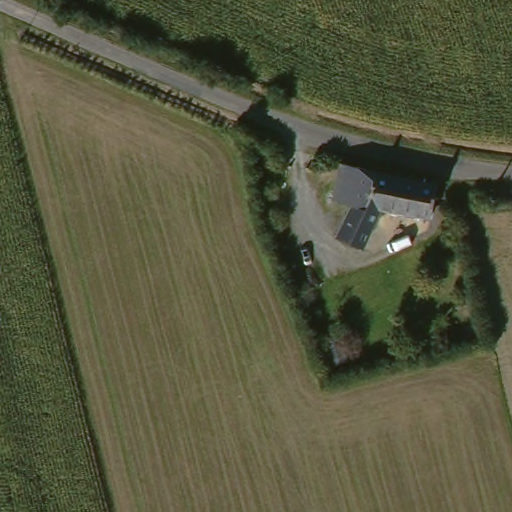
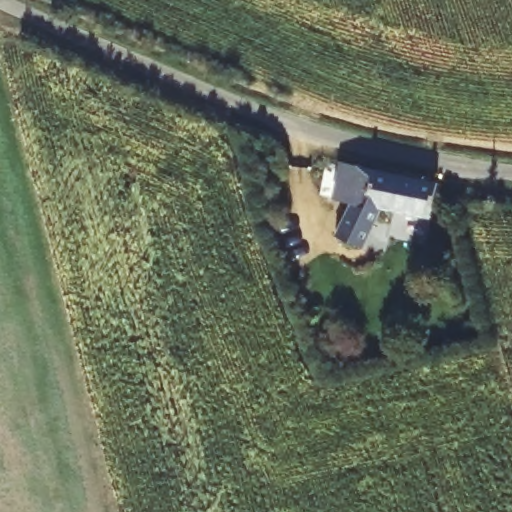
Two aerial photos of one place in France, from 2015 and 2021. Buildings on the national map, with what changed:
unchanged [(436,184),(434,207),(434,219),(382,215),(365,252),(337,237),(353,206),(338,203),(339,177),(374,177),(436,184)]

